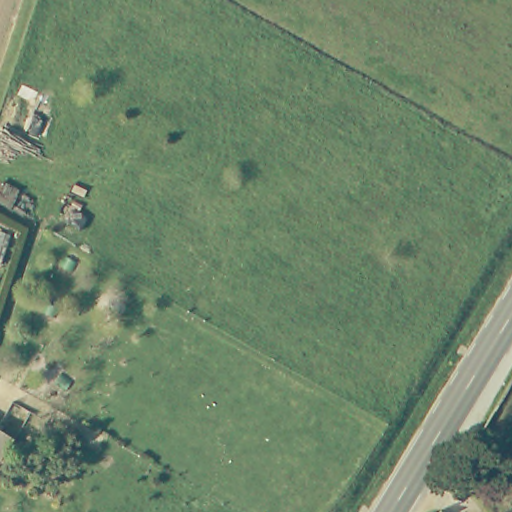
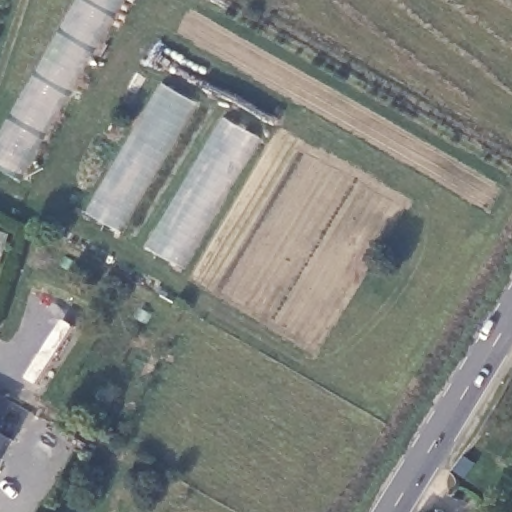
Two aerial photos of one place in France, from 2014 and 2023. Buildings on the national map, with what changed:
new [(0,163),(0,128),(75,0),(124,0),(25,176),(0,163)]
new [(124,231),(90,212),(161,83),(197,102),(124,231)]
new [(183,267),(151,247),(227,118),(261,137),(183,267)]
unchanged [(488,426),(512,382),(512,424),(507,433),(488,426)]
new [(0,425),(0,392),(15,401),(0,425)]
demolished [(0,458),(0,430),(15,438),(0,458)]
new [(0,459),(0,432),(13,440),(0,459)]

